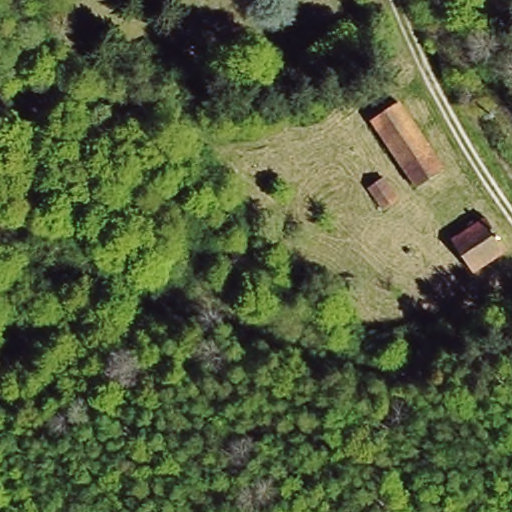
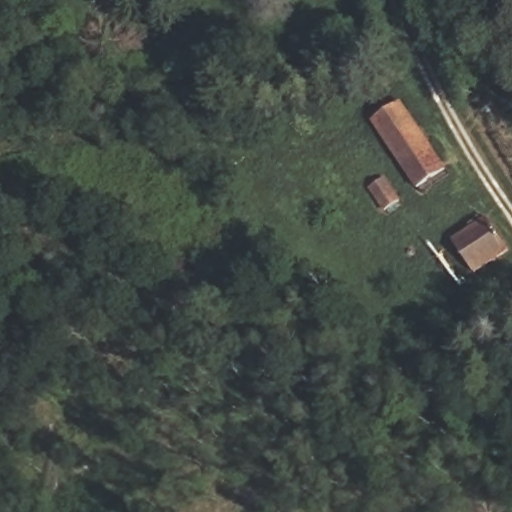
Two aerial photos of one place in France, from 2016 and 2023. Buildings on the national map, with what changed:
unchanged [(371,108),(397,94),(432,155),(427,158),(444,188),(426,198),(410,169),(407,170),(371,108)]
unchanged [(372,182),(388,173),(400,194),(384,203),(372,182)]
unchanged [(489,213),(509,243),(470,265),(451,236),(489,213)]

